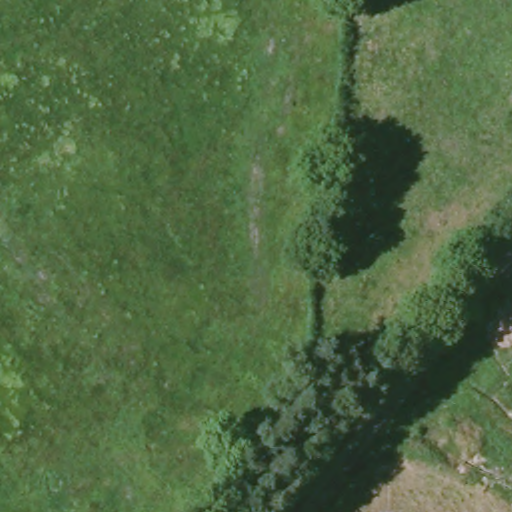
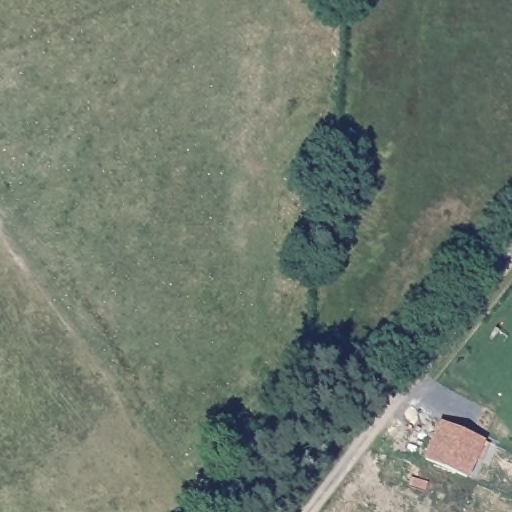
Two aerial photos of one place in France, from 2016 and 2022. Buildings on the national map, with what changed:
new [(443,422),(482,438),(468,473),(428,456),(443,422)]

